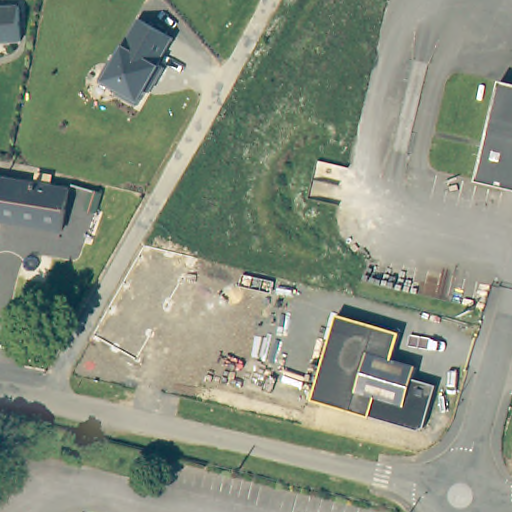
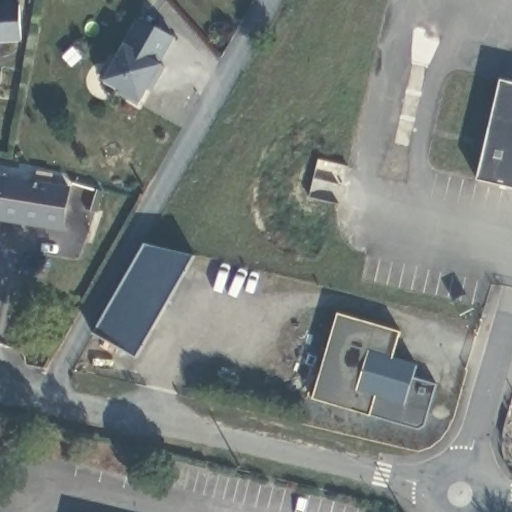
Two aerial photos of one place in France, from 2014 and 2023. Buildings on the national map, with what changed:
unchanged [(20,8),(22,42),(0,44),(0,9),(20,8)]
unchanged [(160,64),(166,67),(157,84),(153,82),(140,105),(120,94),(122,90),(102,79),(113,59),(117,61),(141,19),(175,38),(160,64)]
unchanged [(502,79),(512,81),(512,188),(479,180),(502,79)]
unchanged [(37,180),(38,170),(52,173),(51,183),(70,185),(64,228),(1,219),(3,207),(0,207),(0,175),(37,180)]
new [(138,358),(94,334),(146,244),(195,256),(138,358)]
unchanged [(404,403),(375,396),(369,416),(311,401),(332,314),(396,330),(390,357),(414,363),(404,403)]

